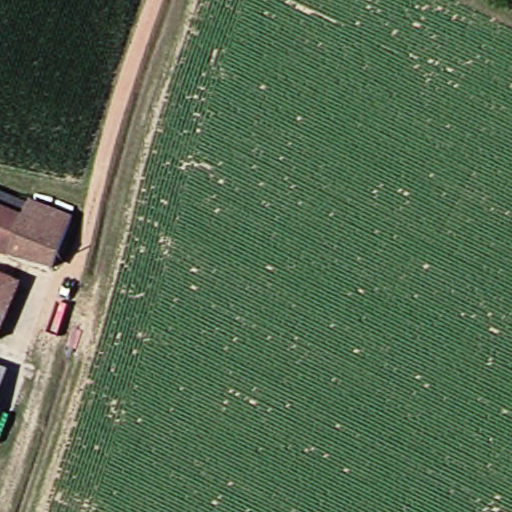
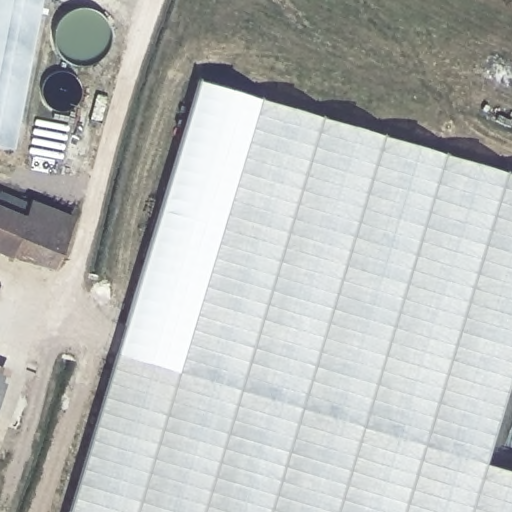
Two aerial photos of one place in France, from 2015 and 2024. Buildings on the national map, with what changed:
new [(13,151),(0,149),(0,0),(42,0),(13,151)]
new [(512,472),(512,512),(67,512),(204,76),(512,167),(512,394),(492,466),(512,472)]
unchanged [(40,202),(73,217),(57,266),(20,256),(29,220),(40,202)]
unchanged [(20,256),(0,247),(0,208),(29,220),(20,256)]
demolished [(7,335),(0,332),(0,273),(24,283),(7,335)]
unchanged [(0,393),(0,379),(5,381),(0,393)]

